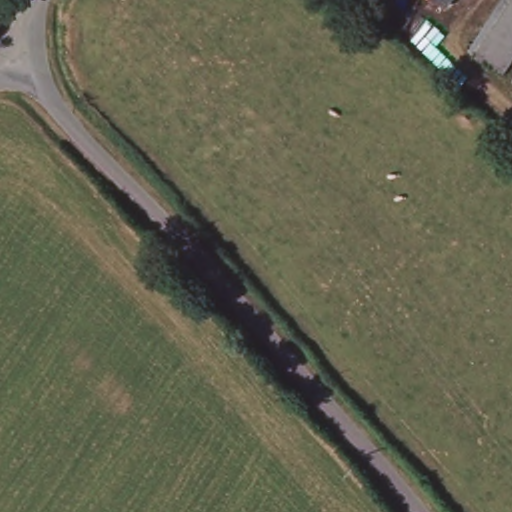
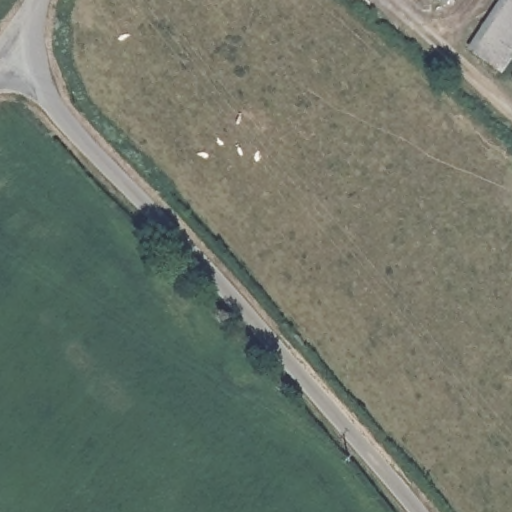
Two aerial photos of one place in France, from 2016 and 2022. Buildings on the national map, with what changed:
unchanged [(443,6),(434,0),(447,0),(443,6)]
unchanged [(512,53),(482,34),(504,0),(512,0),(512,53)]

